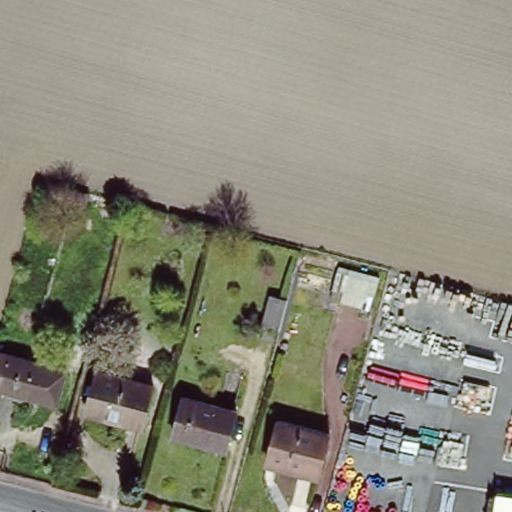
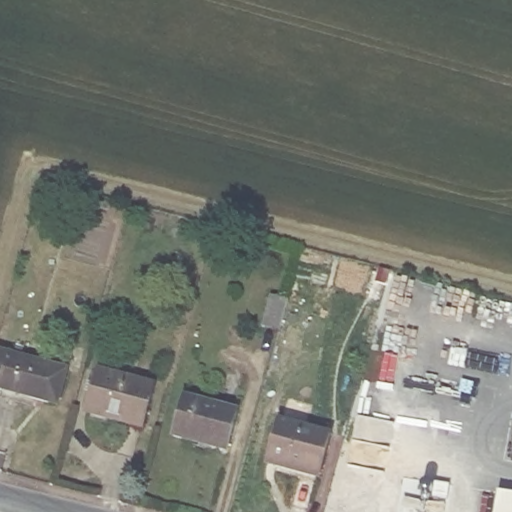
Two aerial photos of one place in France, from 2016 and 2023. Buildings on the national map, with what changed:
unchanged [(365,290),(360,306),(360,307),(340,301),(345,286),(333,283),(336,273),(338,267),(377,278),(375,284),(373,292),(365,290)]
unchanged [(282,321),(280,330),(263,325),(271,295),(288,299),(282,321)]
unchanged [(56,404),(0,388),(0,351),(66,370),(56,404)]
unchanged [(160,386),(150,427),(95,412),(107,371),(160,386)]
unchanged [(241,410),(231,445),(199,437),(198,440),(177,435),(188,396),(241,410)]
unchanged [(326,470),(275,456),(279,443),(282,433),(286,417),(337,430),(326,470)]
unchanged [(512,496),(512,512),(493,512),(496,494),(512,496)]

